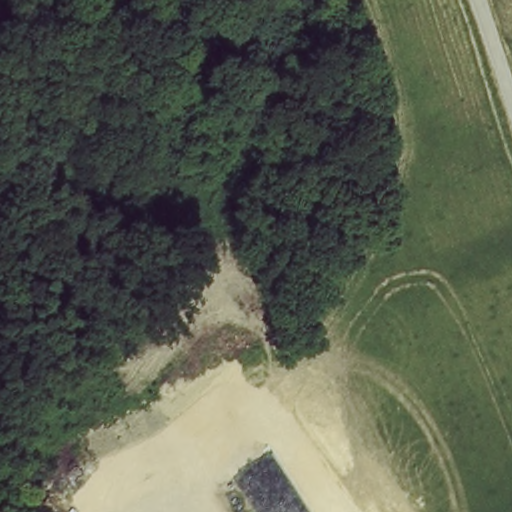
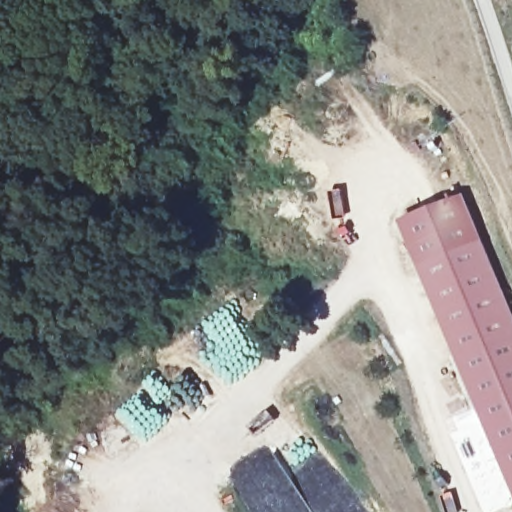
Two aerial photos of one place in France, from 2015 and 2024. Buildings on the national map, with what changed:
new [(464,202),(512,317),(512,485),(405,229),(464,202)]

